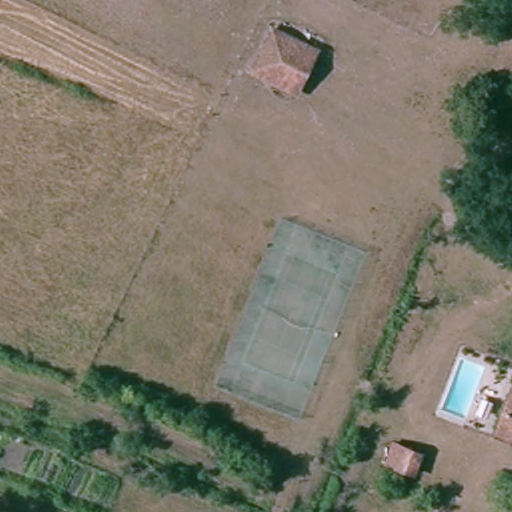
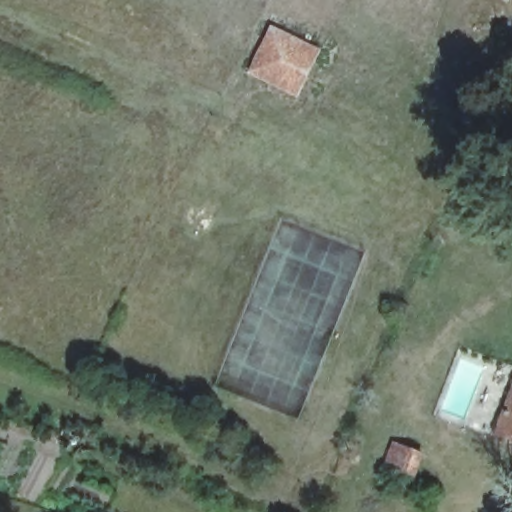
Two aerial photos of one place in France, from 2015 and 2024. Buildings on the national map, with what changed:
unchanged [(251,74),(274,24),(324,51),(304,96),(251,74)]
unchanged [(502,428),(512,401),(512,432),(502,428)]

